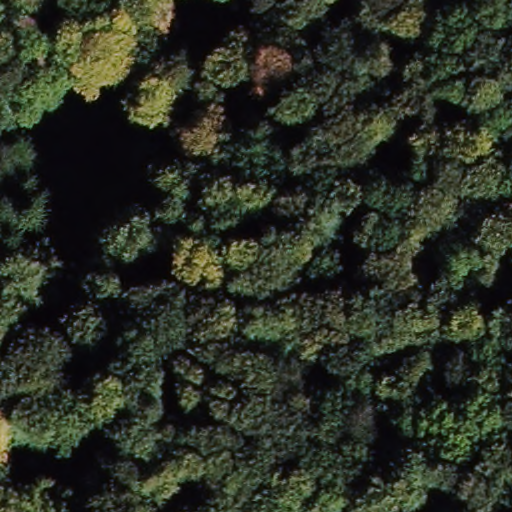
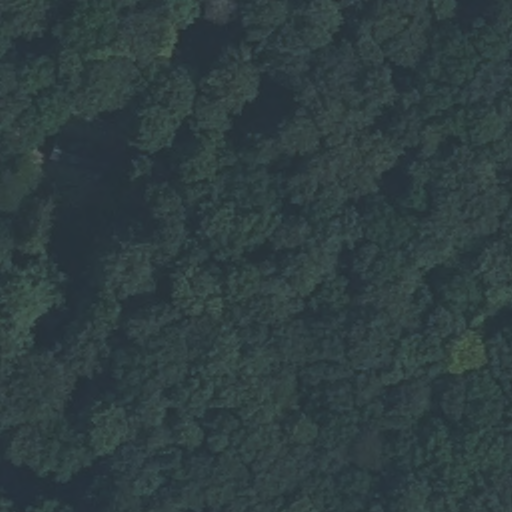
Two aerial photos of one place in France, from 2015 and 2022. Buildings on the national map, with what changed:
unchanged [(44,155),(51,137),(100,153),(95,171),(44,155)]

